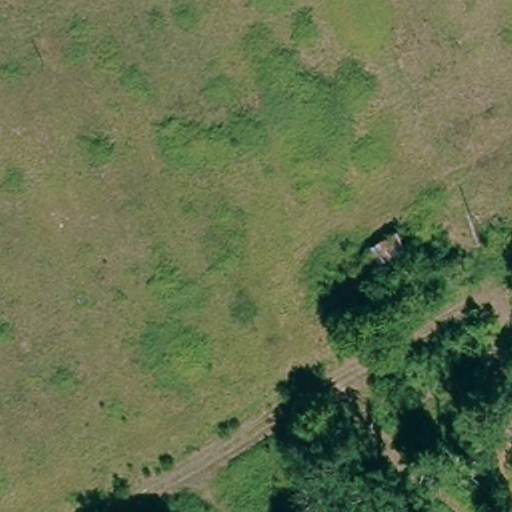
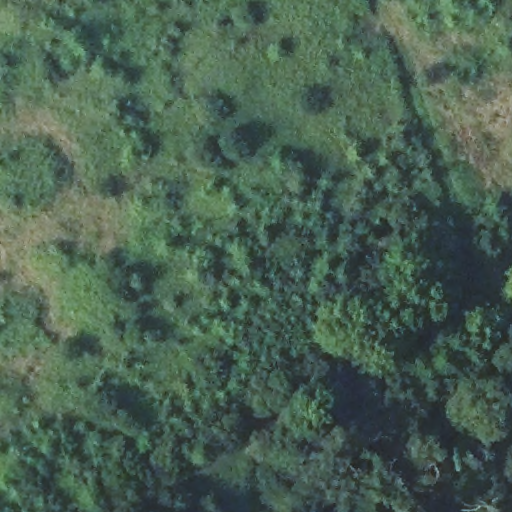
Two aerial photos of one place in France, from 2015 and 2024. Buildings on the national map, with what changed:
unchanged [(362,284),(348,260),(404,226),(420,249),(362,284)]

